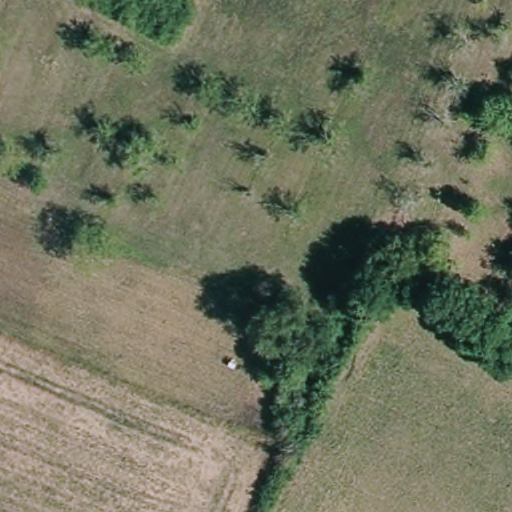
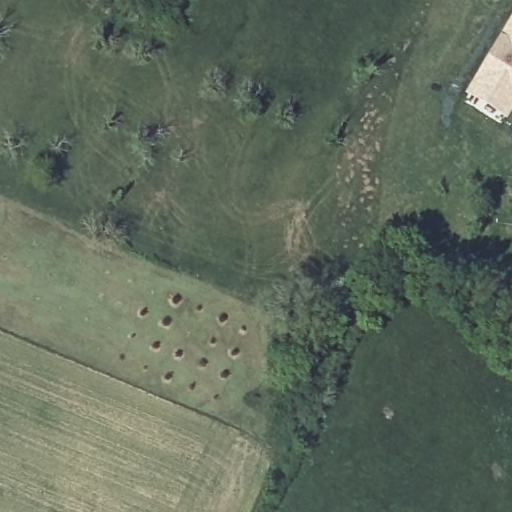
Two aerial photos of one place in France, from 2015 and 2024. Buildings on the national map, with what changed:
new [(512,14),(512,112),(505,123),(462,97),(512,14)]

